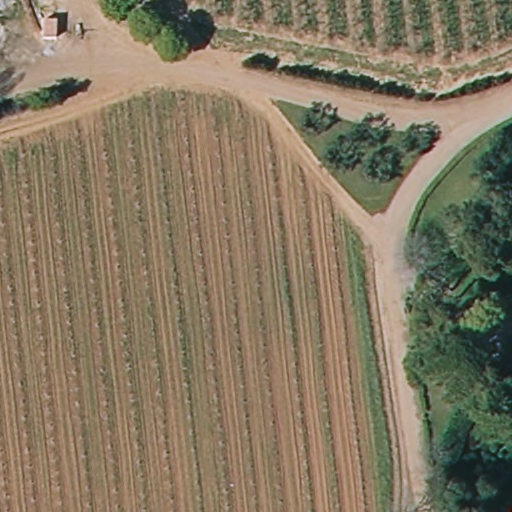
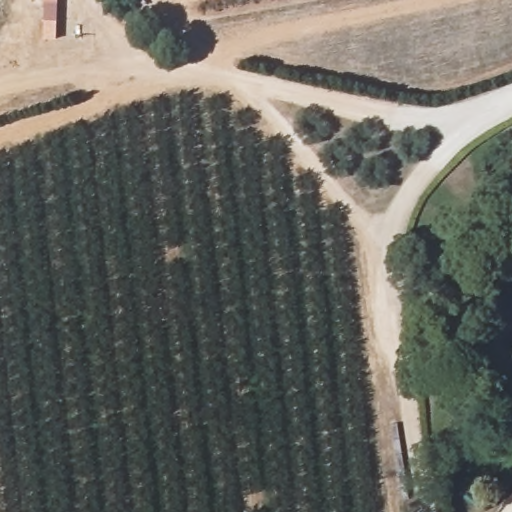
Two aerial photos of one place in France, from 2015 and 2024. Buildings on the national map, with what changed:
unchanged [(512,512),(502,512),(512,501),(512,512)]

